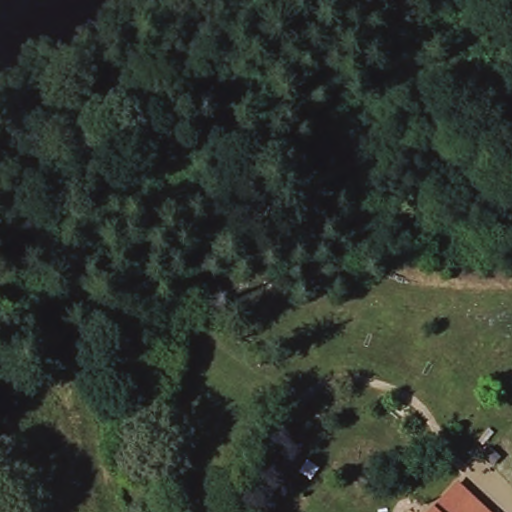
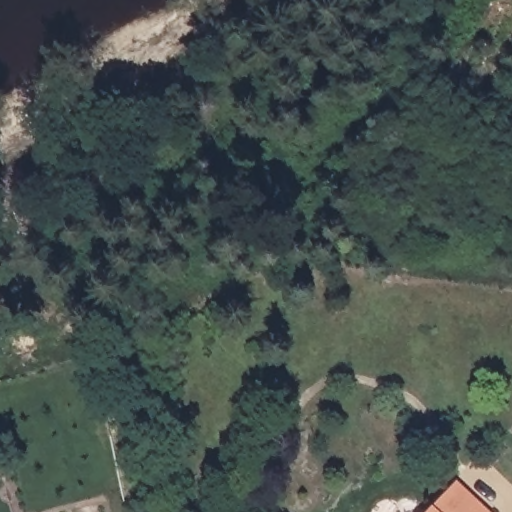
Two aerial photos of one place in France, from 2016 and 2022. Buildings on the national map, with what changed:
unchanged [(458,480),(495,512),(462,512),(444,496),(458,480)]
unchanged [(444,496),(462,512),(430,512),(444,496)]

